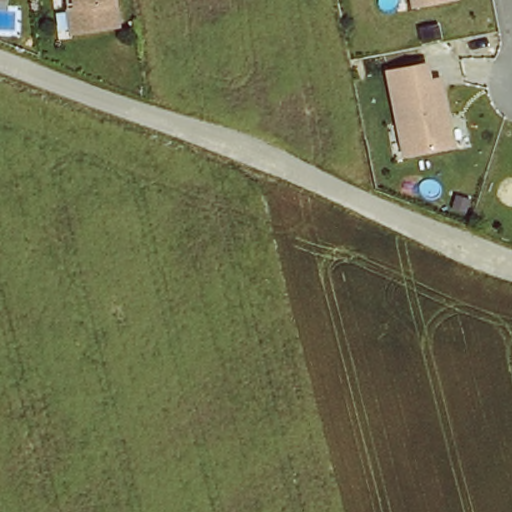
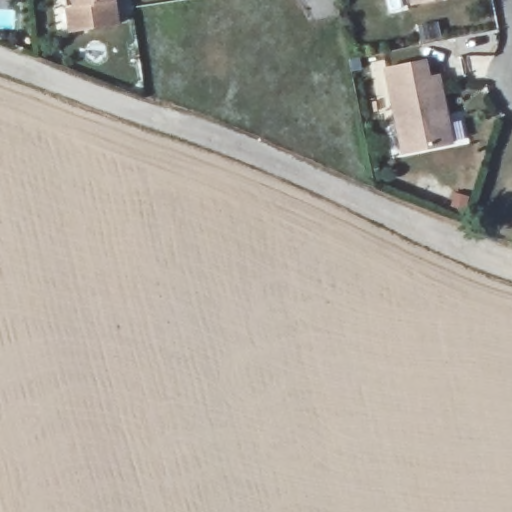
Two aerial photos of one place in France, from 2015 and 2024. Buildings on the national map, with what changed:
unchanged [(77,33),(72,8),(80,7),(79,0),(119,0),(123,23),(77,33)]
unchanged [(411,0),(422,0),(411,2),(411,0)]
unchanged [(434,78),(442,77),(455,141),(402,153),(383,71),(429,61),(434,78)]

